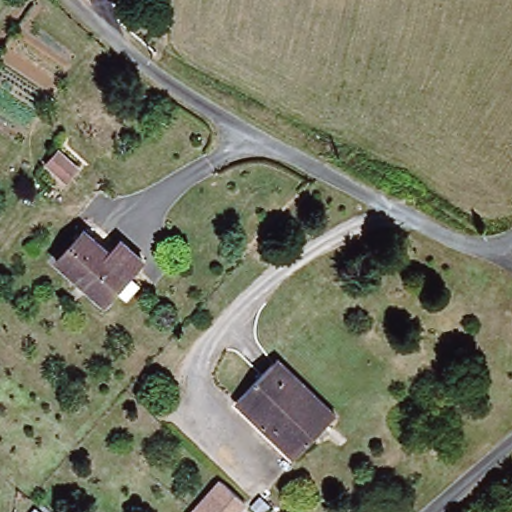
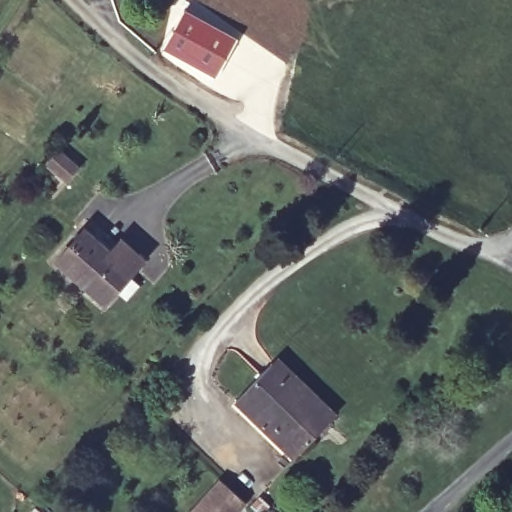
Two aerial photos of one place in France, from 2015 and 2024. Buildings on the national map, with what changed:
new [(185,9),(237,37),(214,77),(162,50),(185,9)]
unchanged [(75,169),(63,182),(44,166),(55,152),(75,169)]
unchanged [(142,263),(103,306),(54,262),(82,231),(110,253),(119,242),(142,263)]
unchanged [(233,403),(264,372),(271,364),(275,360),(335,417),(326,427),(292,461),(233,403)]
unchanged [(223,486),(246,508),(243,512),(198,512),(223,486)]

